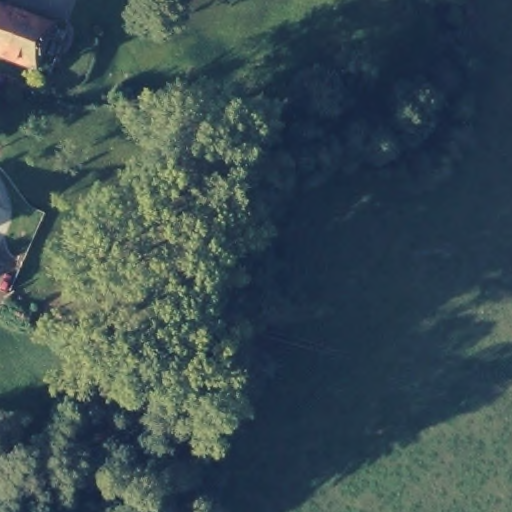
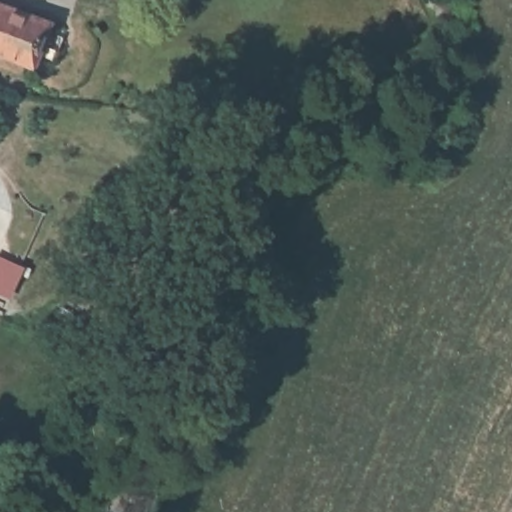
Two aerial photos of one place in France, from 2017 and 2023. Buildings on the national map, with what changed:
unchanged [(30,69),(29,72),(0,60),(0,6),(45,23),(44,27),(58,32),(45,74),(30,69)]

